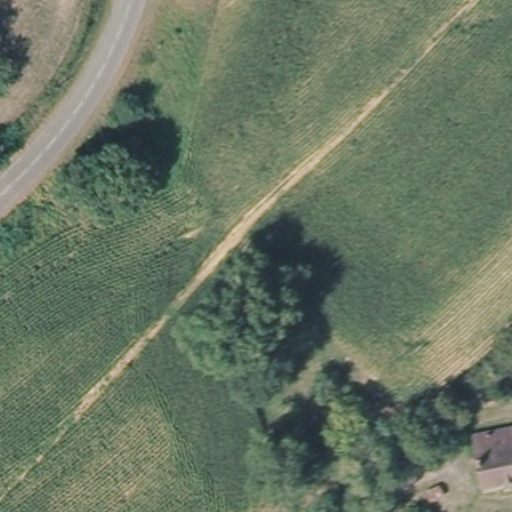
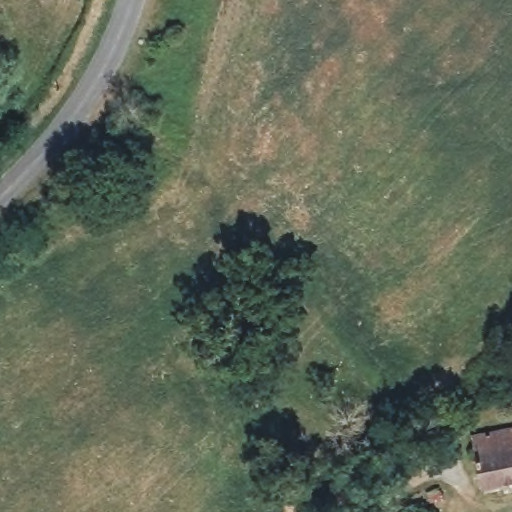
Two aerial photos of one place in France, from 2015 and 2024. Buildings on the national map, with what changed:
unchanged [(512,426),(512,481),(486,486),(483,466),(473,463),(473,456),(480,453),(477,436),(512,426)]

